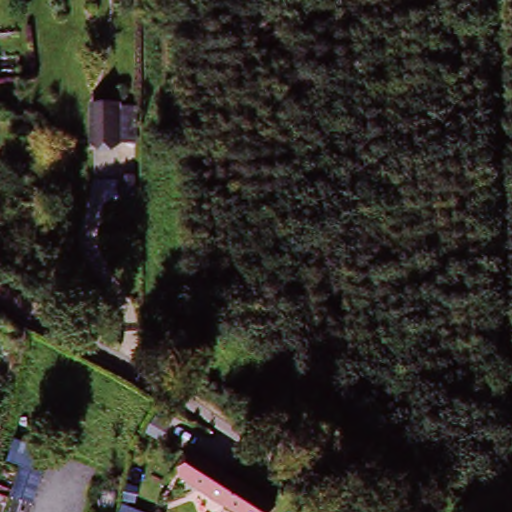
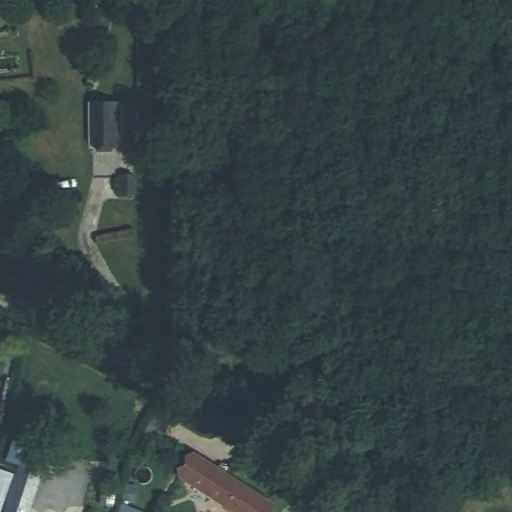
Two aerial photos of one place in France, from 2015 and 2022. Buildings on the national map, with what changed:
unchanged [(117,103),(117,86),(137,87),(138,174),(115,175),(115,154),(86,155),(85,99),(117,103)]
unchanged [(180,472),(197,449),(278,507),(275,512),(234,512),(180,472)]
unchanged [(30,483),(30,481),(49,484),(45,504),(23,501),(20,511),(0,504),(0,499),(8,477),(30,483)]

